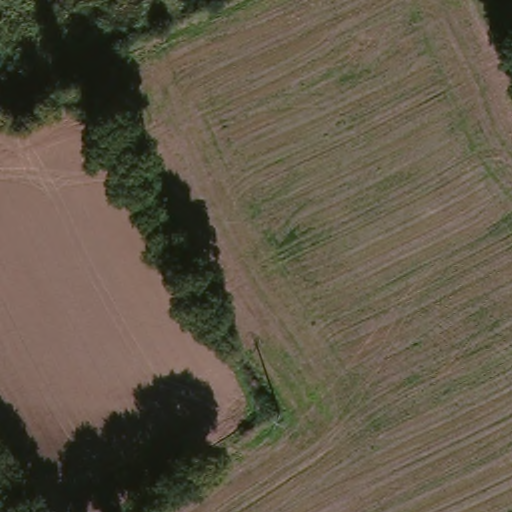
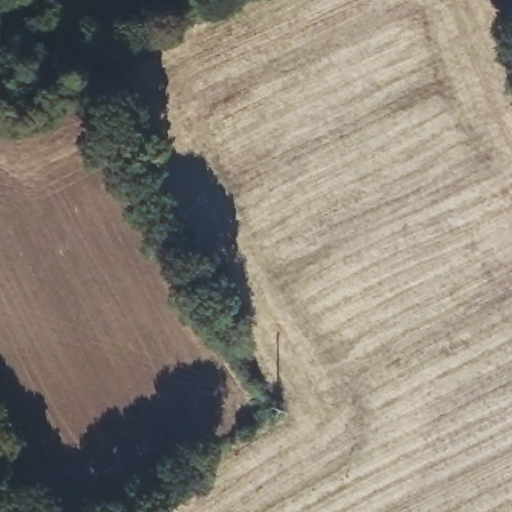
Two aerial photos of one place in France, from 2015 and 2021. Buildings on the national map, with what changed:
[]

